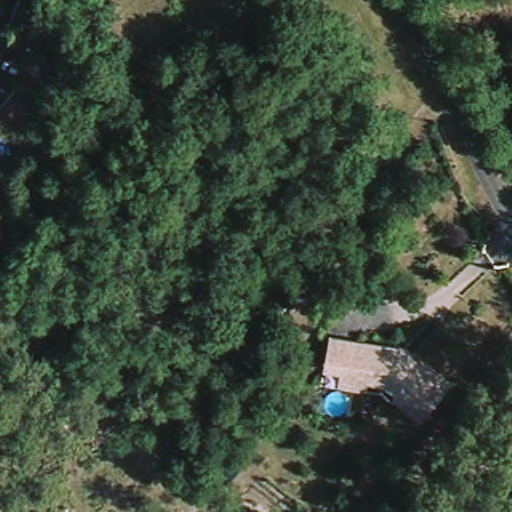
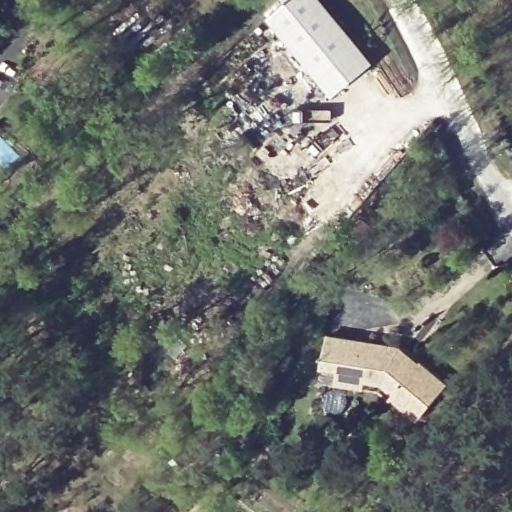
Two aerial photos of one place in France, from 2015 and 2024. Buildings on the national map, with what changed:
new [(295,0),(324,0),(375,65),(335,96),(274,17),(295,0)]
unchanged [(345,386),(347,372),(330,370),(335,338),(405,349),(410,353),(415,358),(425,366),(426,363),(453,387),(425,420),(399,397),(402,395),(392,386),(372,383),(370,390),(345,386)]

